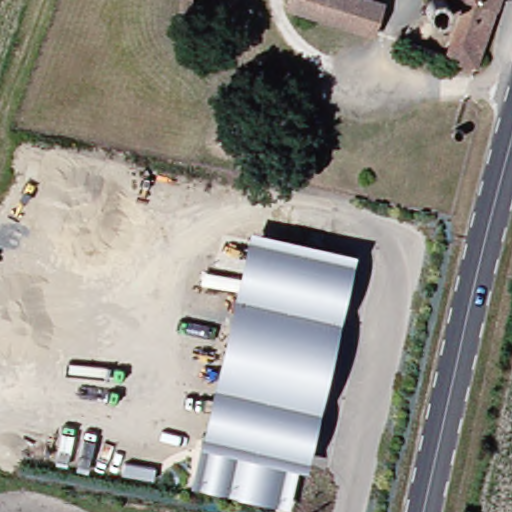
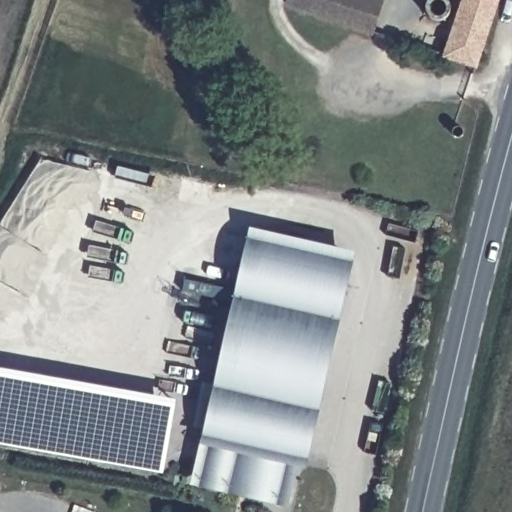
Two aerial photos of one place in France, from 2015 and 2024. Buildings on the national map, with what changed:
unchanged [(282,0),(357,0),(374,6),(367,35),(281,5),(282,0)]
unchanged [(454,38),(468,0),(502,0),(484,50),(477,70),(446,59),(454,38)]
unchanged [(442,28),(432,25),(430,15),(433,5),(446,3),(454,12),(455,21),(449,27),(442,28)]
unchanged [(338,260),(295,470),(290,470),(283,504),(194,487),(200,450),(216,453),(257,244),(338,260)]
new [(177,399),(164,474),(0,445),(0,368),(177,399)]

